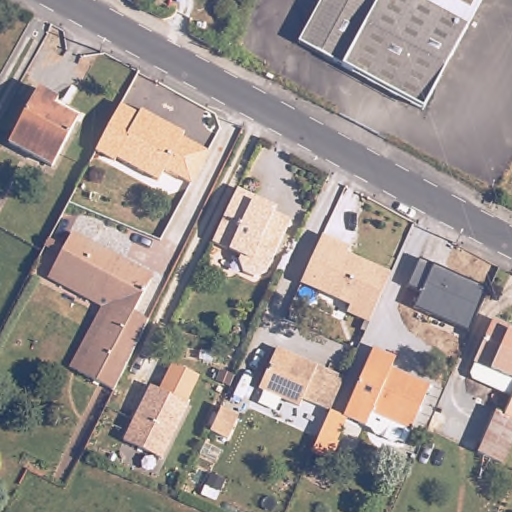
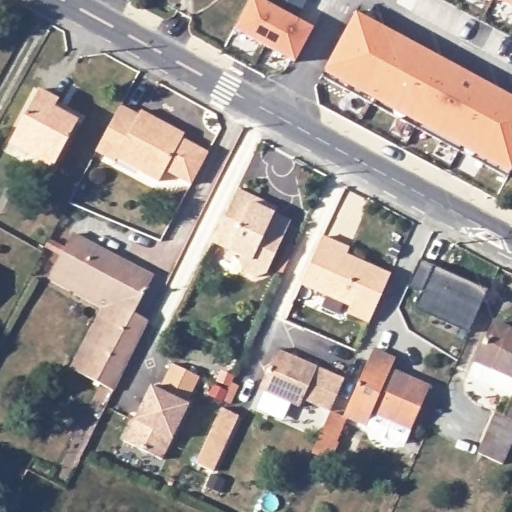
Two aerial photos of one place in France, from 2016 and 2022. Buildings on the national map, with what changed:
new [(233,29),(249,0),(262,0),(268,3),(270,0),(305,0),(295,18),(313,29),(295,63),(233,29)]
demolished [(328,0),(482,0),(441,82),(429,104),(305,45),(328,0)]
new [(497,0),(512,0),(512,8),(497,0)]
new [(508,171),(323,71),(355,12),(512,97),(512,164),(508,171)]
unchanged [(42,92),(64,104),(59,114),(81,126),(57,170),(14,147),(42,92)]
unchanged [(140,113),(141,109),(170,123),(184,130),(181,134),(200,145),(205,148),(197,164),(189,179),(184,177),(164,166),(157,177),(117,155),(115,159),(97,149),(122,103),(140,113)]
unchanged [(267,276),(255,280),(241,274),(238,263),(240,258),(210,242),(235,189),(255,198),(275,208),(272,214),(292,223),(267,276)]
unchanged [(101,310),(49,280),(75,232),(155,274),(136,314),(151,323),(120,392),(74,369),(101,310)]
unchanged [(365,321),(342,312),(346,304),(296,280),(318,233),(343,244),(348,246),(344,254),(386,273),(365,321)]
unchanged [(421,292),(406,285),(418,260),(433,266),(487,290),(468,333),(414,308),(421,292)]
unchanged [(494,324),(512,333),(512,380),(475,363),(494,324)]
unchanged [(347,377),(334,413),(347,419),(332,462),(312,454),(328,412),(305,400),(301,408),(260,389),(276,348),(347,377)]
unchanged [(397,359),(392,369),(431,386),(410,428),(378,411),(371,428),(347,417),(377,352),(397,359)]
unchanged [(151,384),(189,404),(161,458),(124,439),(151,384)]
unchanged [(237,408),(226,432),(209,424),(220,399),(237,408)]
unchanged [(503,466),(478,454),(497,413),(506,417),(512,405),(512,445),(503,466)]

